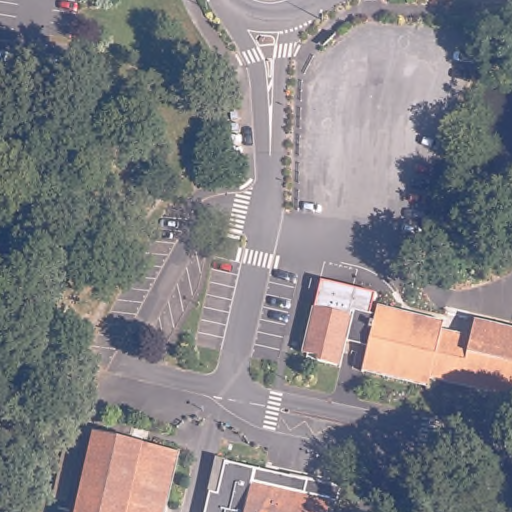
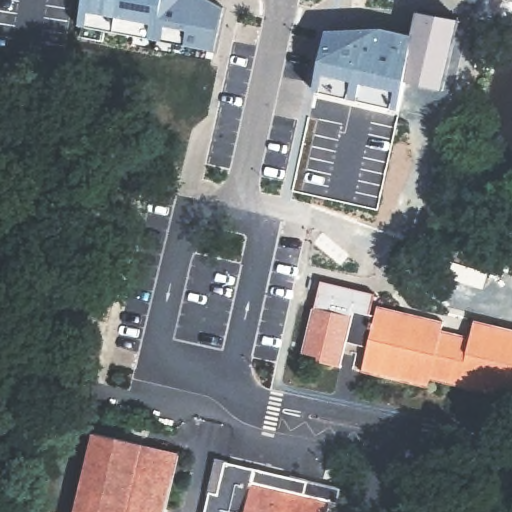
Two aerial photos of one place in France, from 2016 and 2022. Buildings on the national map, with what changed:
new [(83,0),(211,0),(222,7),(214,51),(77,27),(83,0)]
new [(325,30),(378,27),(415,36),(419,12),(460,20),(443,91),(405,82),(398,111),(317,94),(325,30)]
unchanged [(367,365),(372,341),(350,336),(343,362),(321,356),(322,352),(308,348),(320,302),(355,311),(356,306),(380,312),(382,302),(448,318),(446,327),(475,333),(480,317),(512,325),(512,391),(455,377),(436,372),(434,381),(367,365)]
unchanged [(184,448),(168,512),(80,512),(100,428),(184,448)]
unchanged [(71,470),(60,467),(66,438),(79,441),(71,470)]
unchanged [(225,489),(232,457),(347,484),(343,501),(335,499),(332,512),(211,512),(216,487),(225,489)]

